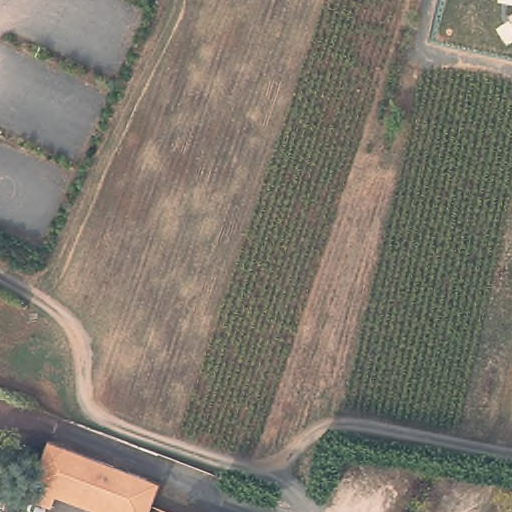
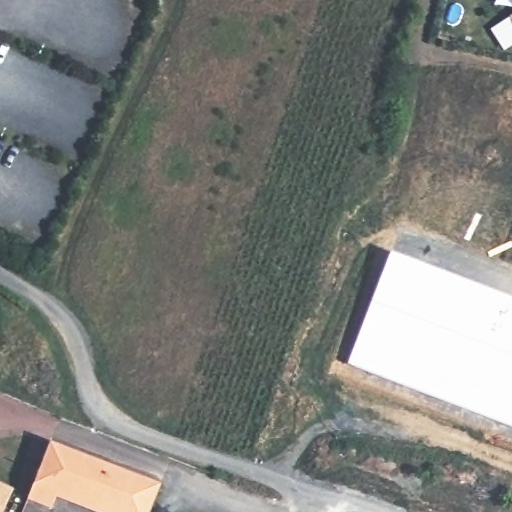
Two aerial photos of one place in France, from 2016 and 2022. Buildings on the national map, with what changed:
unchanged [(512,13),(512,23),(507,16),(512,13)]
new [(512,425),(345,364),(388,252),(512,299),(512,425)]
unchanged [(56,494),(52,505),(29,496),(32,489),(53,441),(157,481),(162,483),(151,512),(120,512),(59,489),(56,494)]
new [(16,486),(5,512),(0,512),(0,479),(16,486)]

